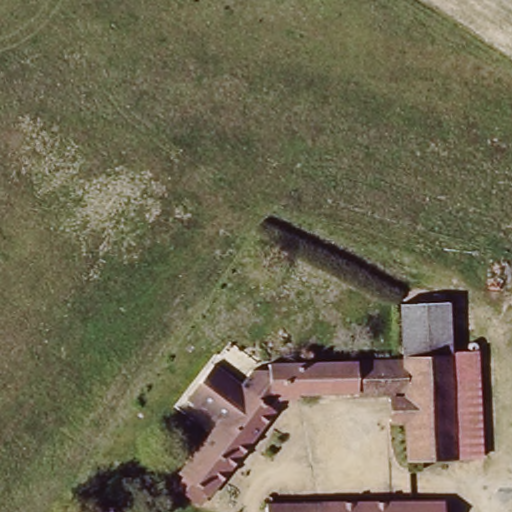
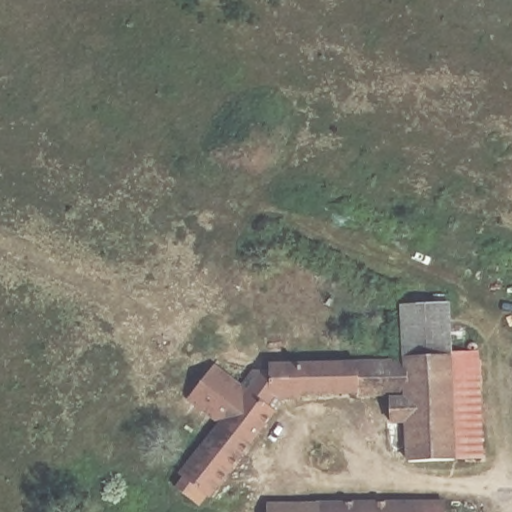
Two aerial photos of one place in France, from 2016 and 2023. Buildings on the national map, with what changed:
unchanged [(397,303),(450,298),(455,350),(482,351),(487,463),(443,464),(435,357),(396,357),(397,303)]
unchanged [(435,357),(443,464),(402,466),(400,424),(386,424),(384,395),(277,399),(273,407),(282,414),(205,509),(170,484),(214,425),(185,402),(215,362),(245,385),(262,357),(396,357),(435,357)]
unchanged [(445,512),(314,512),(314,497),(444,493),(445,512)]
unchanged [(263,512),(263,498),(314,497),(314,512),(263,512)]

